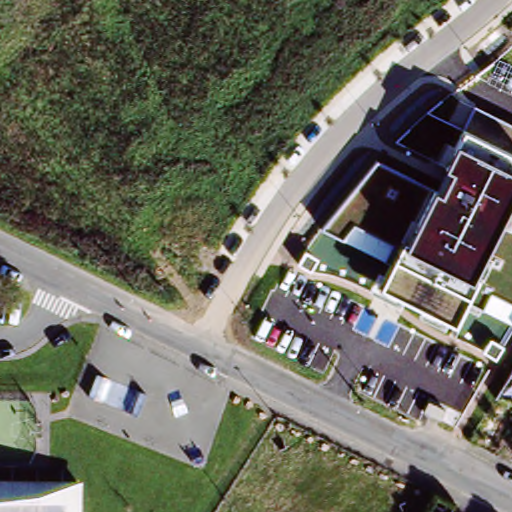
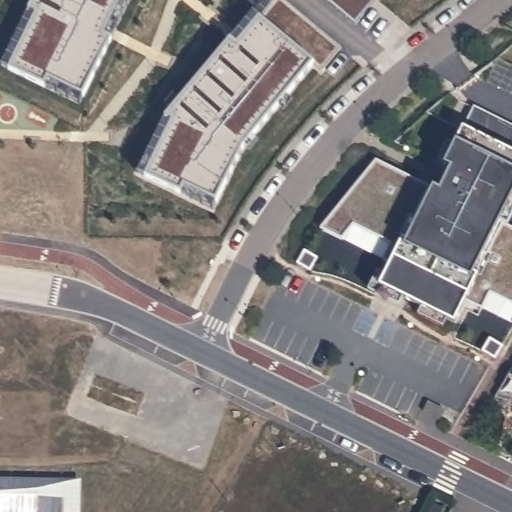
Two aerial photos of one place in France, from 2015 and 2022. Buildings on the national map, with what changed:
new [(42,87),(13,72),(5,69),(30,12),(35,0),(127,0),(109,38),(79,97),(76,104),(42,87)]
new [(178,192),(141,176),(168,120),(160,116),(227,39),(233,44),(271,0),(283,0),(339,47),(319,71),(310,64),(240,146),(213,202),(211,209),(178,192)]
new [(354,22),(328,0),(374,0),(354,22)]
unchanged [(512,126),(512,197),(501,221),(512,227),(512,324),(482,309),(466,300),(454,323),(447,321),(444,326),(419,313),(423,307),(403,299),(398,305),(369,290),(386,256),(322,229),(378,160),(436,182),(457,142),(463,130),(475,107),(512,126)]
unchanged [(501,392),(510,373),(512,375),(512,397),(501,392)]
unchanged [(70,512),(0,512),(0,480),(70,480),(70,512)]

